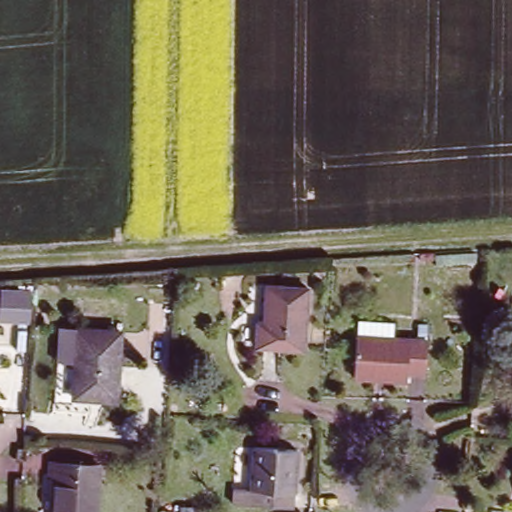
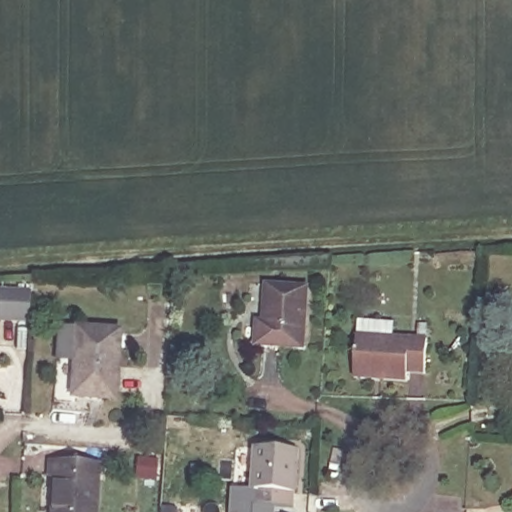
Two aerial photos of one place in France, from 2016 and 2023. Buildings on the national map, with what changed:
unchanged [(314,287),(311,346),(266,344),(269,285),(314,287)]
unchanged [(31,322),(0,320),(0,288),(34,290),(31,322)]
unchanged [(429,375),(414,374),(414,382),(362,381),(364,338),(364,322),(399,323),(399,338),(429,339),(429,375)]
unchanged [(57,328),(126,328),(122,406),(72,405),(76,368),(55,366),(57,328)]
unchanged [(303,450),(300,508),(240,505),(241,490),(261,491),(263,448),(303,450)]
unchanged [(97,462),(95,512),(53,512),(55,460),(97,462)]

